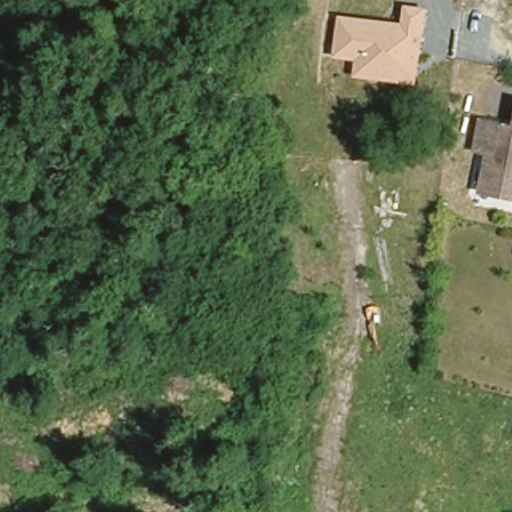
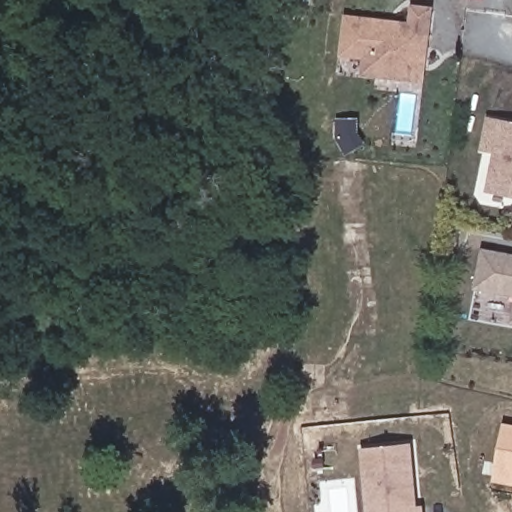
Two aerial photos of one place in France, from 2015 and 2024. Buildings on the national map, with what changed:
unchanged [(425,84),(360,77),(362,60),(338,58),(343,14),(408,21),(411,2),(435,5),(425,84)]
unchanged [(487,193),(492,153),(478,151),(482,122),(512,126),(512,197),(487,193)]
new [(473,290),(481,248),(512,254),(512,297),(473,290)]
new [(511,323),(512,318),(512,323),(511,323)]
new [(512,425),(512,487),(492,483),(503,423),(512,425)]
new [(362,445),(411,443),(414,512),(364,512),(363,481),(362,445)]

